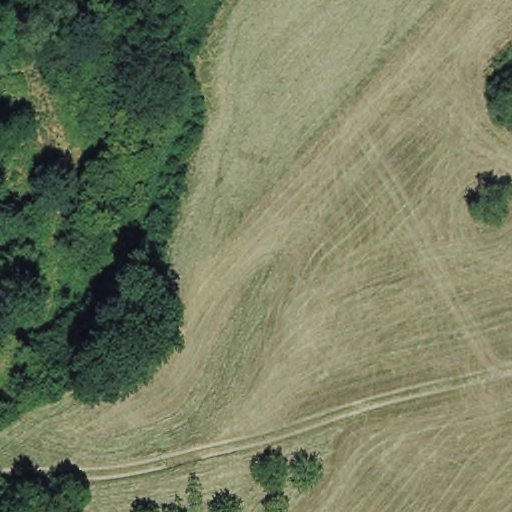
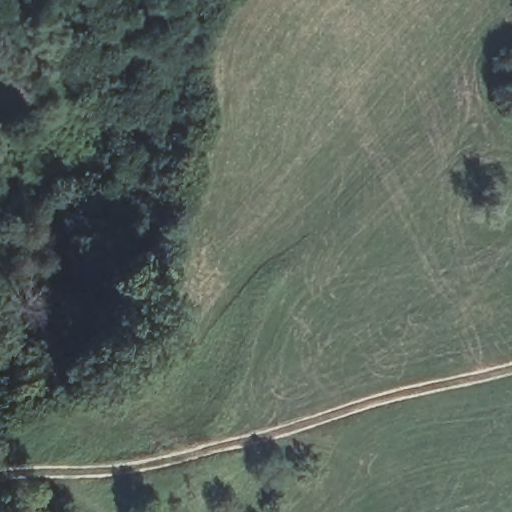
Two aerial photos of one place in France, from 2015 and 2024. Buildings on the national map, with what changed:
[]

